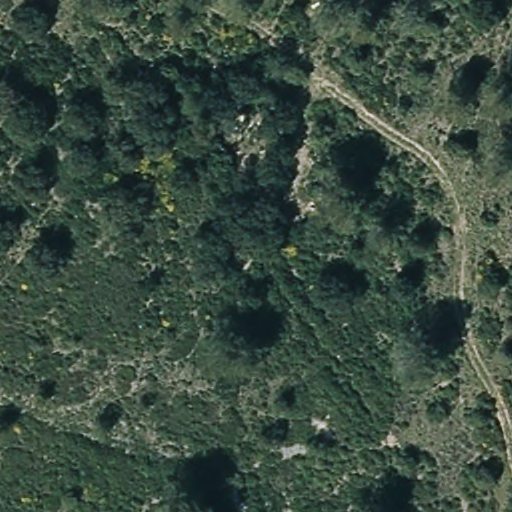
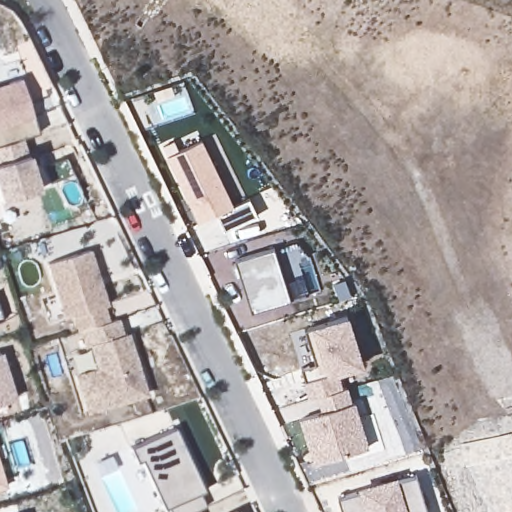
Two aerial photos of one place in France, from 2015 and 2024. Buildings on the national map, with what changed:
new [(33,118),(32,119),(37,134),(20,139),(0,146),(0,85),(20,78),(33,118)]
new [(0,202),(0,146),(20,139),(25,156),(31,155),(41,190),(0,202)]
new [(200,141),(232,207),(198,223),(166,157),(200,141)]
new [(274,250),(290,301),(252,313),(236,262),(274,250)]
new [(90,251),(107,306),(103,307),(108,323),(80,331),(78,332),(73,317),(64,320),(47,264),(90,251)]
new [(322,412),(317,396),(309,398),(303,382),(305,381),(301,369),(315,364),(305,330),(312,327),(311,325),(349,313),(364,365),(338,373),(343,389),(347,387),(352,402),(355,401),(369,447),(313,463),(299,419),(322,412)]
new [(90,347),(86,348),(80,331),(108,323),(116,320),(122,336),(126,335),(134,360),(137,368),(145,396),(87,414),(76,377),(98,370),(90,347)]
new [(0,405),(0,362),(13,401),(0,405)]
new [(204,492),(199,494),(206,508),(197,512),(168,512),(167,509),(163,511),(140,462),(136,465),(129,449),(174,428),(204,492)]
new [(427,512),(341,512),(337,498),(415,474),(427,512)]
new [(0,489),(0,475),(4,488),(0,489)]
new [(239,512),(232,512),(238,509),(239,512)]
new [(200,512),(197,512),(200,511),(200,512)]

